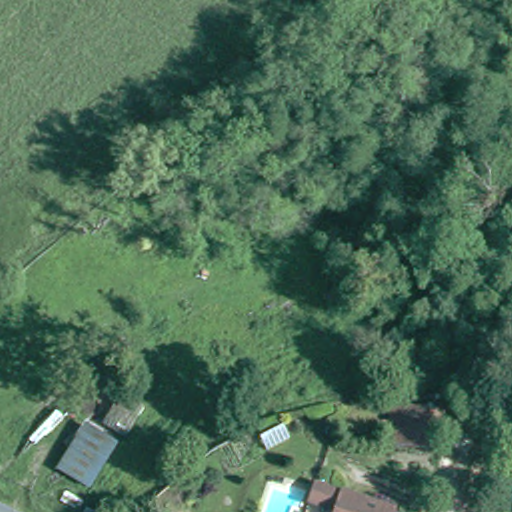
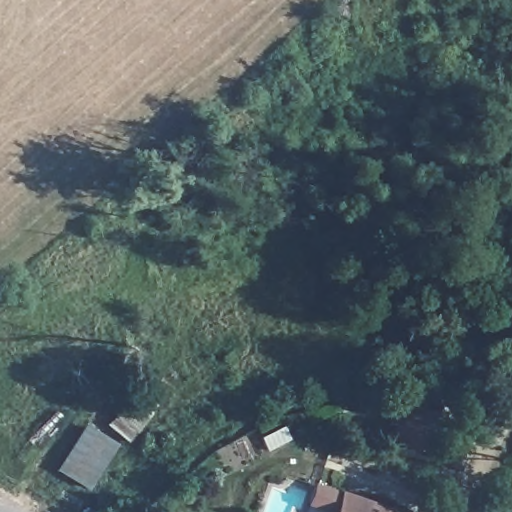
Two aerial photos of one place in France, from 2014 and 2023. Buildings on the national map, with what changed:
unchanged [(443,411),(439,450),(398,445),(402,406),(443,411)]
unchanged [(86,424),(125,444),(91,487),(58,468),(86,424)]
unchanged [(396,511),(396,512),(334,512),(343,491),(396,511)]

